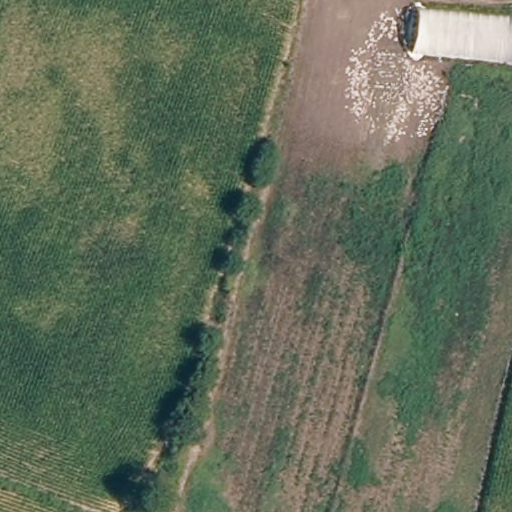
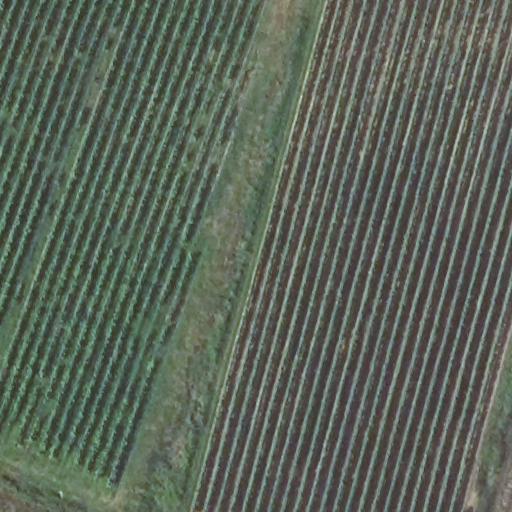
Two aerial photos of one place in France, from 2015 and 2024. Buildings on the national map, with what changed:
demolished [(414,7),(512,16),(512,58),(410,51),(414,7)]

